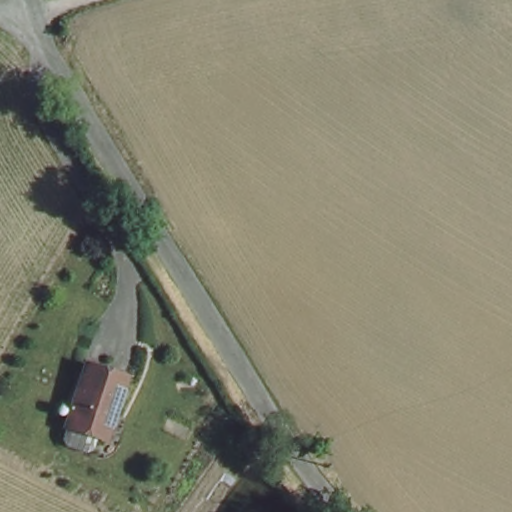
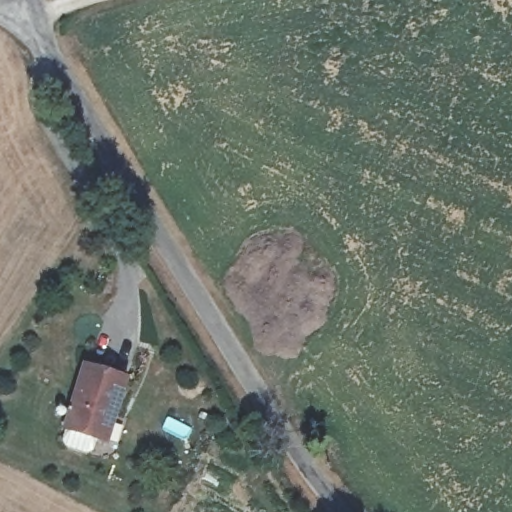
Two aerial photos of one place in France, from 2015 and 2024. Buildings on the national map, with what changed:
unchanged [(98,440),(65,430),(85,367),(126,379),(113,417),(105,442),(98,440)]

